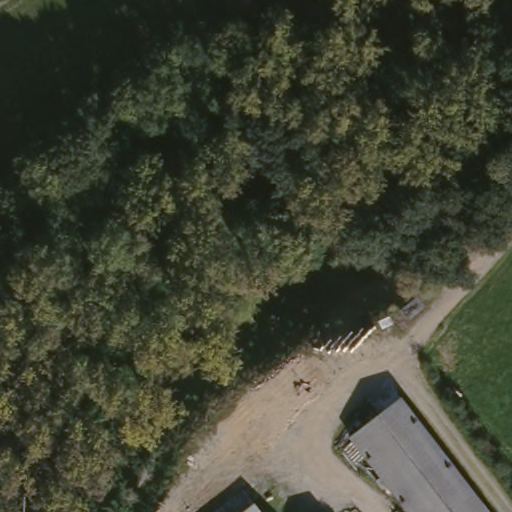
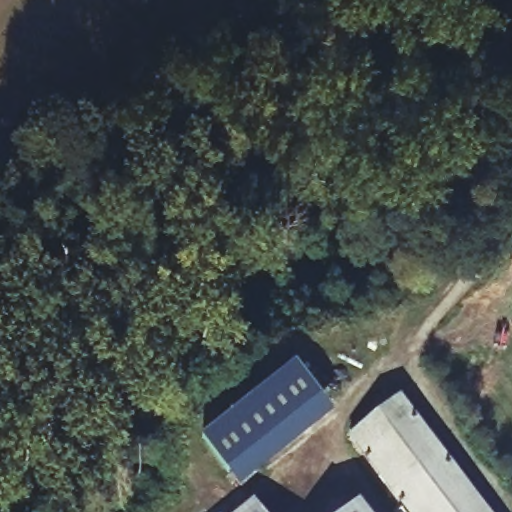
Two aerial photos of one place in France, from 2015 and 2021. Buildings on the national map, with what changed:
new [(205,445),(297,369),(335,417),(241,492),(205,445)]
unchanged [(484,512),(408,512),(353,441),(401,404),(484,512)]
new [(360,504),(366,512),(350,512),(360,504)]

